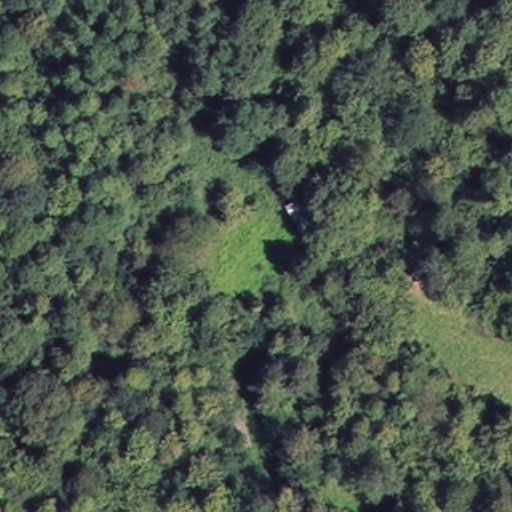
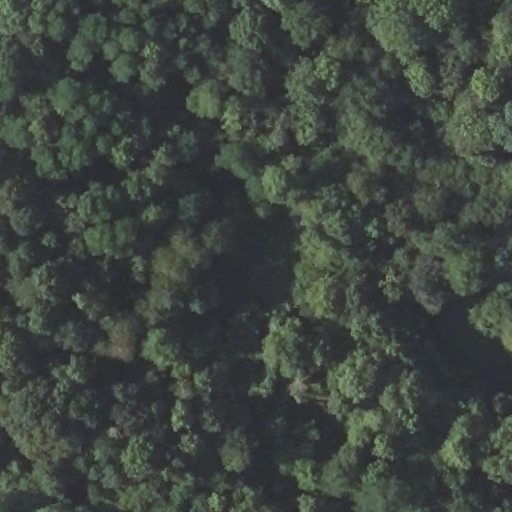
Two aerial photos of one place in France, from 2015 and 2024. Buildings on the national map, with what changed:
unchanged [(223,391),(215,357),(271,337),(283,370),(223,391)]

